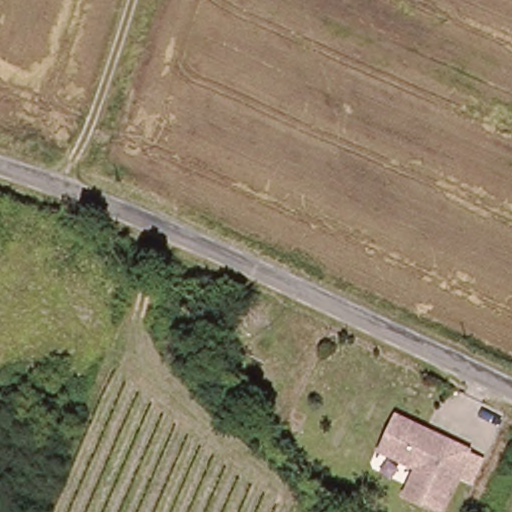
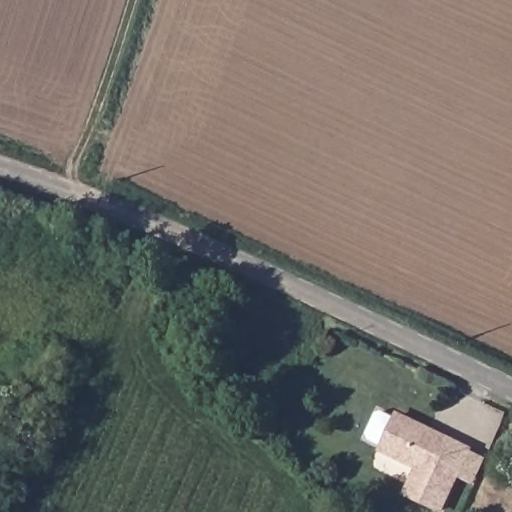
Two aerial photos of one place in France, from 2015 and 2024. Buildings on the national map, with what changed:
unchanged [(403,489),(416,463),(379,446),(395,412),(435,430),(408,492),(403,489)]
unchanged [(435,430),(468,445),(439,506),(408,492),(435,430)]

